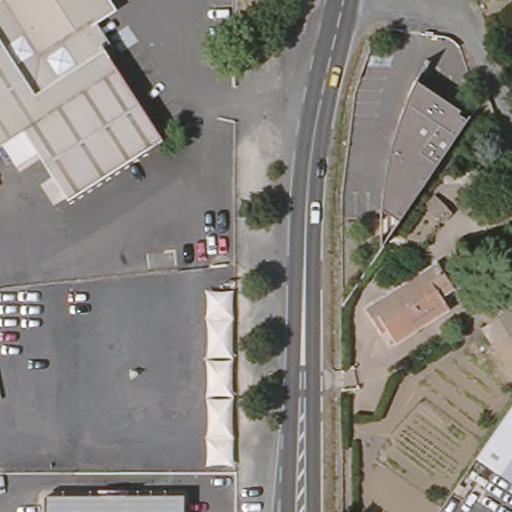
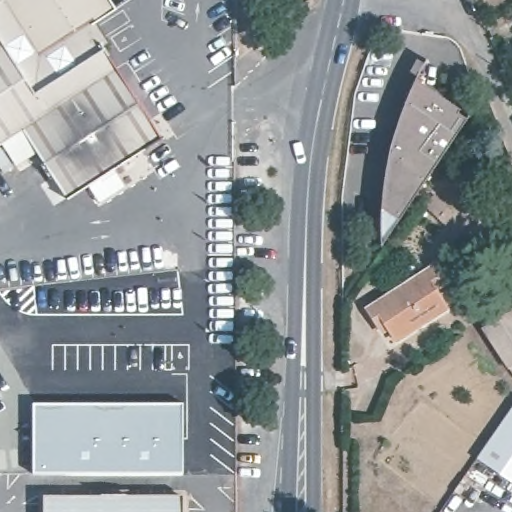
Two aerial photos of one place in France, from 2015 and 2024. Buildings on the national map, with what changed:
unchanged [(159,134),(64,195),(33,147),(15,158),(2,137),(0,139),(0,0),(110,0),(113,5),(89,21),(159,134)]
unchanged [(379,234),(379,211),(379,203),(380,189),(383,167),(387,146),(392,124),(399,103),(407,82),(411,72),(457,102),(455,105),(464,111),(397,214),(380,242),(379,234)]
unchanged [(443,314),(392,347),(382,333),(374,340),(358,314),(430,267),(447,291),(436,300),(443,314)]
unchanged [(510,363),(489,327),(512,313),(512,367),(510,363)]
new [(32,402),(185,402),(183,474),(90,475),(32,473),(32,402)]
unchanged [(477,456),(512,407),(512,481),(477,456)]
unchanged [(49,496),(103,497),(103,485),(128,486),(128,497),(186,498),(186,512),(49,512),(49,496)]

